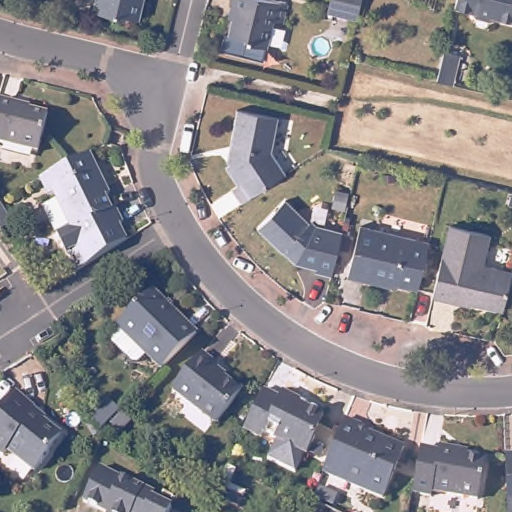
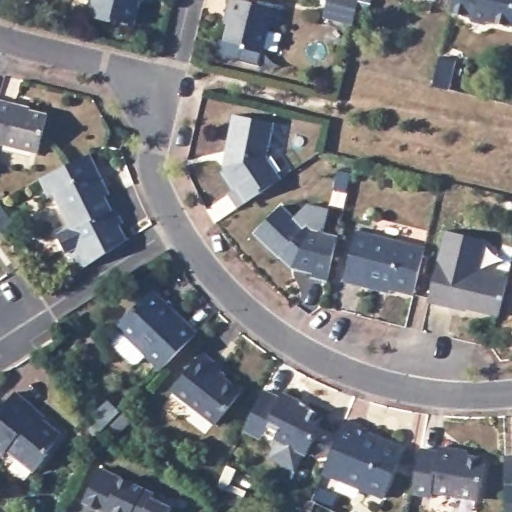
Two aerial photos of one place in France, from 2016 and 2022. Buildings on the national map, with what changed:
unchanged [(126,21),(109,17),(108,20),(81,13),(84,0),(131,0),(126,21)]
unchanged [(279,2),(276,20),(266,18),(257,58),(215,49),(218,34),(221,34),(226,8),(224,8),(226,0),(269,0),(279,2)]
unchanged [(320,13),(324,0),(355,0),(354,5),(350,19),(320,13)]
unchanged [(512,5),(507,24),(488,20),(482,23),(468,20),(465,14),(447,10),(450,0),(512,0),(512,5)]
unchanged [(437,60),(451,64),(444,93),(430,90),(437,60)]
unchanged [(8,103),(7,106),(40,114),(30,152),(0,145),(0,101),(8,103)]
unchanged [(221,150),(230,113),(271,122),(264,156),(278,178),(236,205),(227,190),(232,186),(220,168),(223,151),(221,150)]
unchanged [(101,187),(104,194),(100,196),(106,210),(111,208),(117,223),(114,225),(120,239),(73,269),(64,249),(61,251),(52,231),(66,224),(52,194),(46,197),(37,177),(85,154),(101,187)]
unchanged [(304,273),(305,269),(285,264),(273,252),(271,253),(248,230),(275,203),(299,226),(331,234),(321,277),(304,273)]
unchanged [(14,228),(1,236),(0,235),(0,206),(14,228)]
unchanged [(448,305),(423,299),(440,228),(479,237),(472,268),(501,275),(492,313),(461,306),(449,304),(448,305)]
unchanged [(362,284),(361,288),(343,283),(354,232),(424,248),(413,296),(362,284)]
unchanged [(512,275),(512,306),(505,304),(512,275)]
unchanged [(111,325),(146,289),(190,331),(156,367),(111,325)]
unchanged [(195,350),(211,362),(208,367),(235,387),(211,421),(168,388),(195,350)]
unchanged [(273,393),(276,389),(293,398),(303,402),(302,406),(316,413),(306,435),(307,436),(300,451),(258,430),(256,436),(238,426),(258,386),(273,393)]
unchanged [(41,452),(43,453),(28,472),(1,450),(0,451),(0,402),(7,393),(27,410),(37,418),(34,421),(53,437),(41,452)]
unchanged [(89,426),(108,407),(119,418),(100,437),(89,426)]
unchanged [(361,428),(373,432),(372,435),(404,447),(385,498),(324,474),(344,421),(361,428)]
unchanged [(416,445),(433,448),(434,444),(451,447),(451,451),(480,455),(473,495),(426,488),(425,492),(408,490),(416,445)]
unchanged [(512,512),(503,512),(500,456),(512,456),(512,512)]
unchanged [(97,468),(152,492),(150,497),(169,505),(166,512),(105,512),(82,502),(97,468)]

